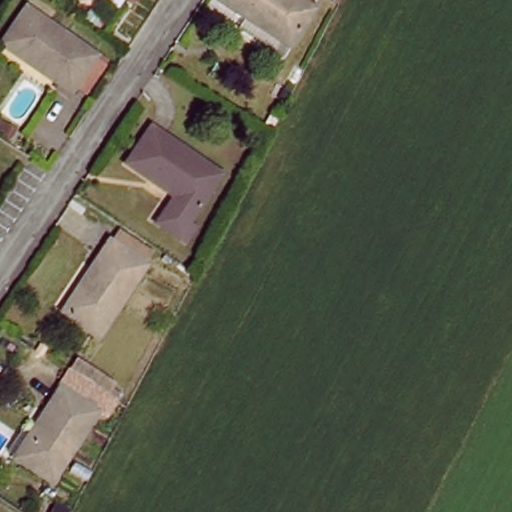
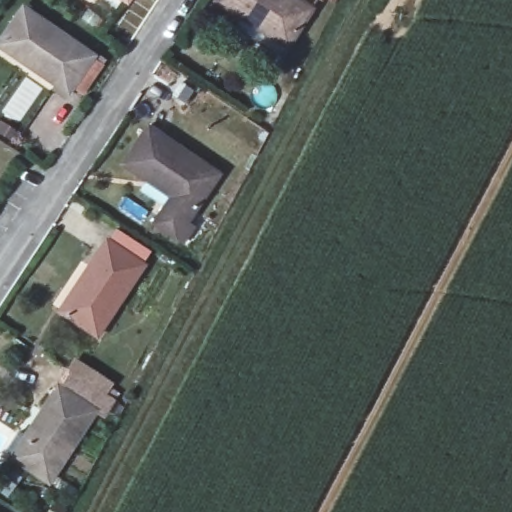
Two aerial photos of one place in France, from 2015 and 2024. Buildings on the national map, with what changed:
unchanged [(126,0),(133,0),(131,3),(126,0)]
unchanged [(223,3),(224,0),(292,0),(312,14),(289,47),(223,3)]
unchanged [(28,15),(95,61),(72,96),(3,50),(28,15)]
unchanged [(181,236),(159,222),(175,197),(128,165),(151,131),(222,176),(181,236)]
unchanged [(96,333),(63,311),(108,241),(141,263),(96,333)]
unchanged [(62,472),(26,448),(70,380),(108,402),(62,472)]

